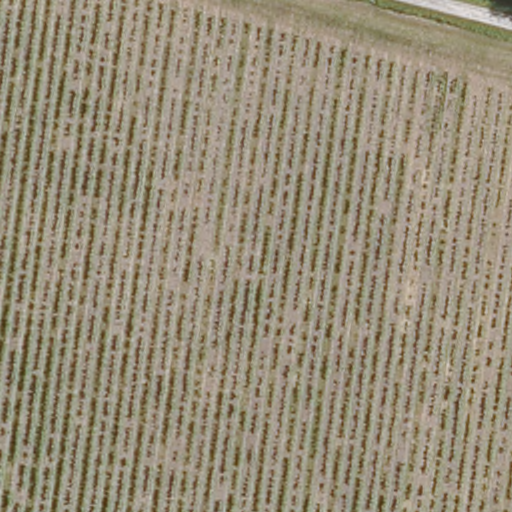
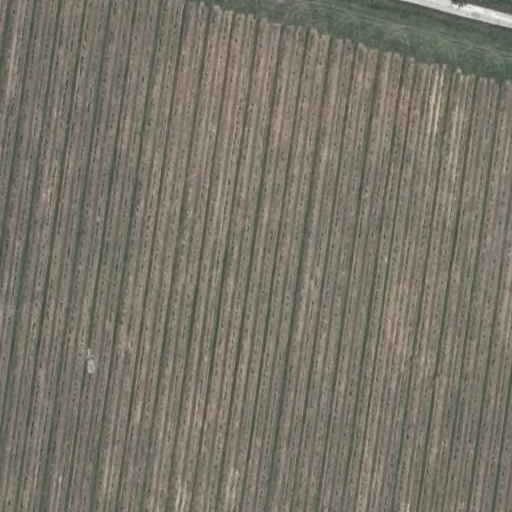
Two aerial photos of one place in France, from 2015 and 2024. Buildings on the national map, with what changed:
[]

